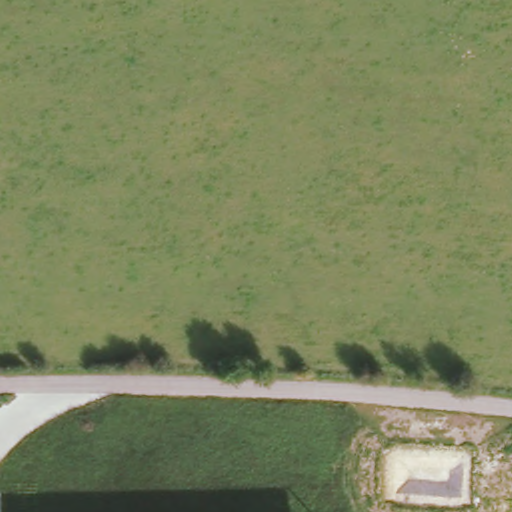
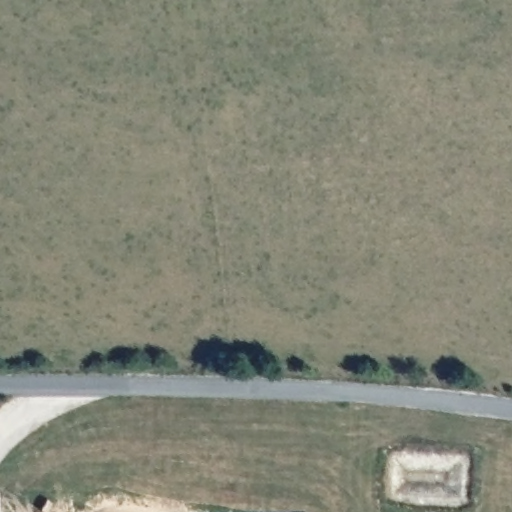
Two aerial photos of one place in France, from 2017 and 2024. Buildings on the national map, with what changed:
[]

